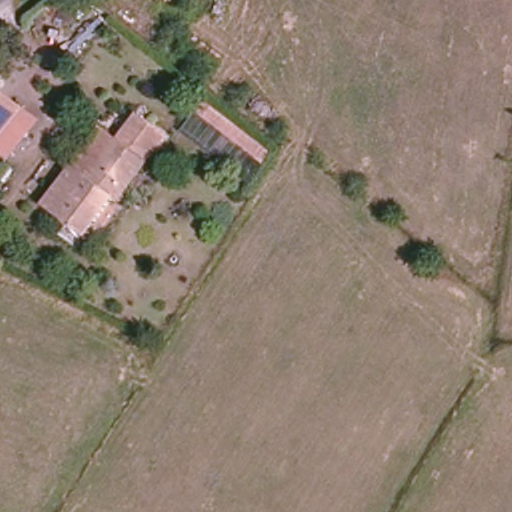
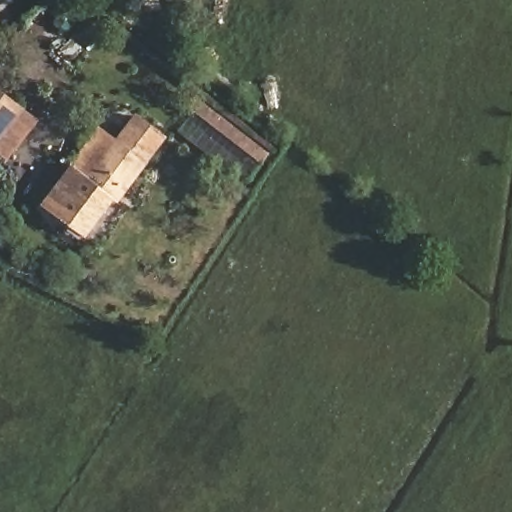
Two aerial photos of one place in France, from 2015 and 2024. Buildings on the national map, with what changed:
unchanged [(23,108),(0,140),(0,91),(23,108)]
unchanged [(142,112),(167,129),(84,235),(43,204),(79,158),(77,157),(107,121),(121,132),(125,135),(142,112)]

